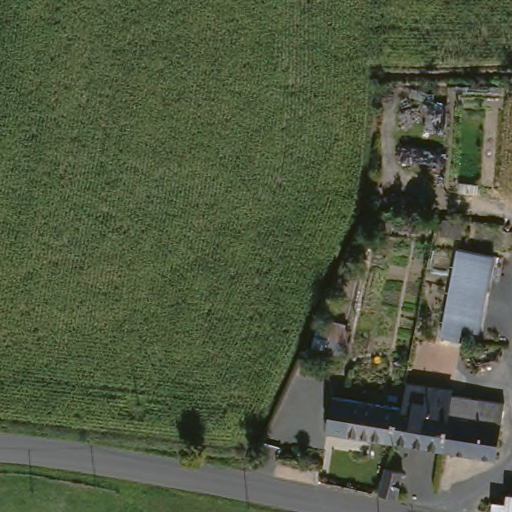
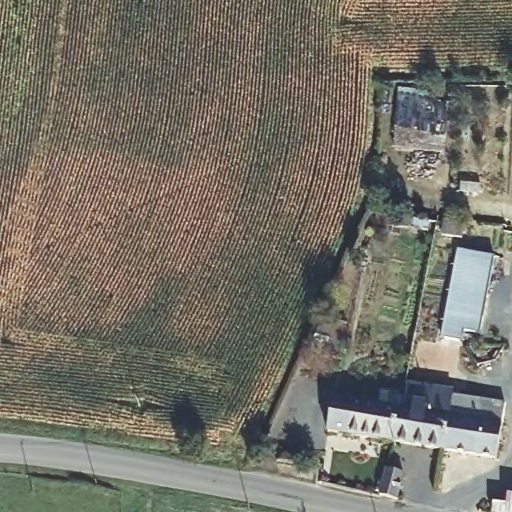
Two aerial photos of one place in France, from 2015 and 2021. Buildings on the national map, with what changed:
unchanged [(445,213),(461,215),(459,233),(442,231),(445,213)]
unchanged [(451,259),(472,262),(457,354),(436,351),(451,259)]
unchanged [(397,406),(404,406),(407,388),(454,395),(446,452),(389,443),(397,406)]
unchanged [(328,433),(334,395),(397,406),(389,443),(328,433)]
unchanged [(454,395),(506,404),(497,460),(494,460),(446,452),(454,395)]
unchanged [(383,468),(401,471),(397,498),(379,495),(383,468)]
unchanged [(495,491),(512,494),(512,512),(481,512),(482,503),(493,507),(495,491)]

